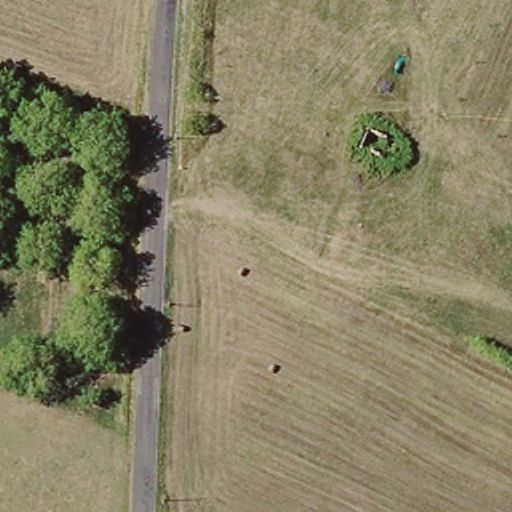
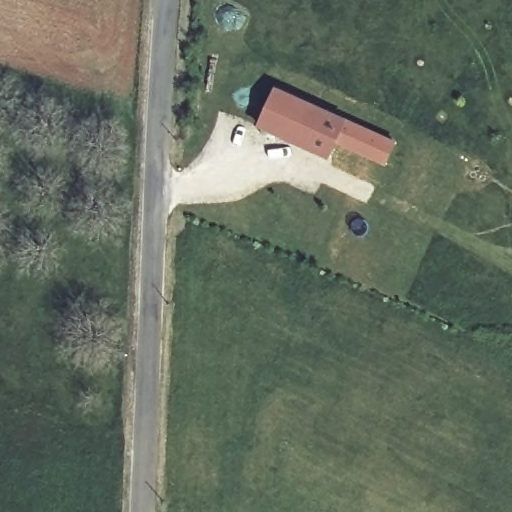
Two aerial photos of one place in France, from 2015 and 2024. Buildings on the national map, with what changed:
new [(347,119),(329,160),(255,128),(274,86),(347,119)]
demolished [(357,149),(370,126),(393,138),(382,163),(357,149)]

